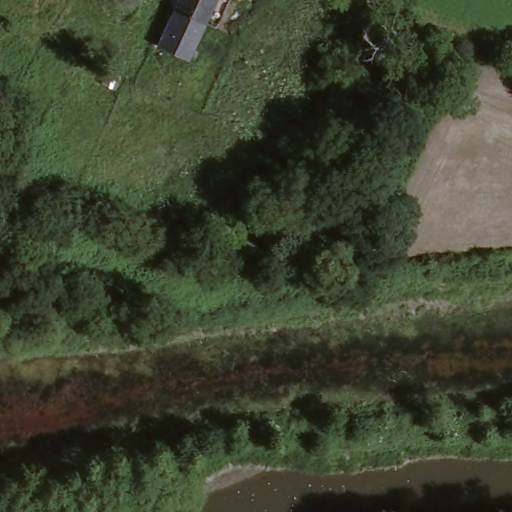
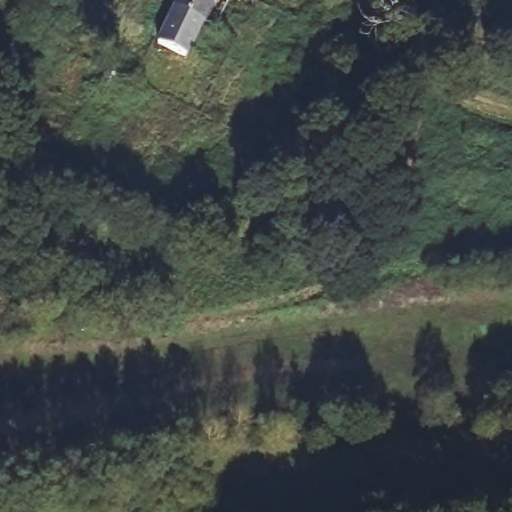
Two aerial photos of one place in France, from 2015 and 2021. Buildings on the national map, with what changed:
unchanged [(173,12),(178,0),(214,0),(204,27),(173,12)]
unchanged [(190,64),(158,50),(173,12),(204,27),(190,64)]

